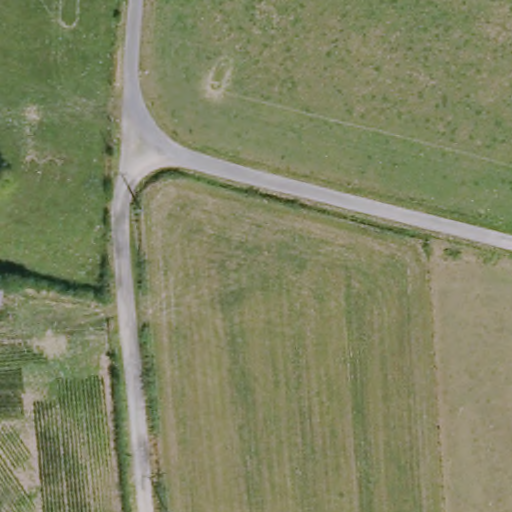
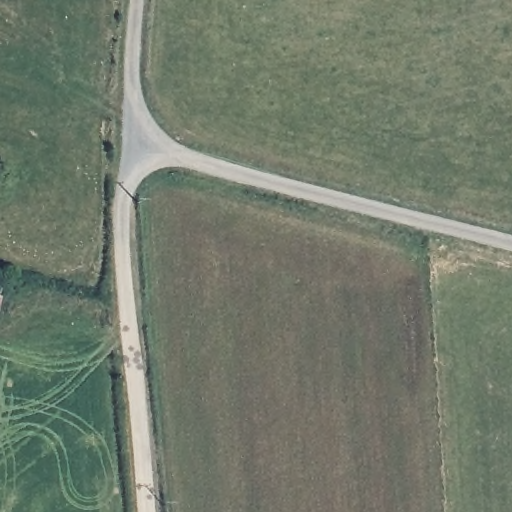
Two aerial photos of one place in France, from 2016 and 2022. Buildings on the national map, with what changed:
unchanged [(6,286),(0,312),(0,284),(6,286)]

